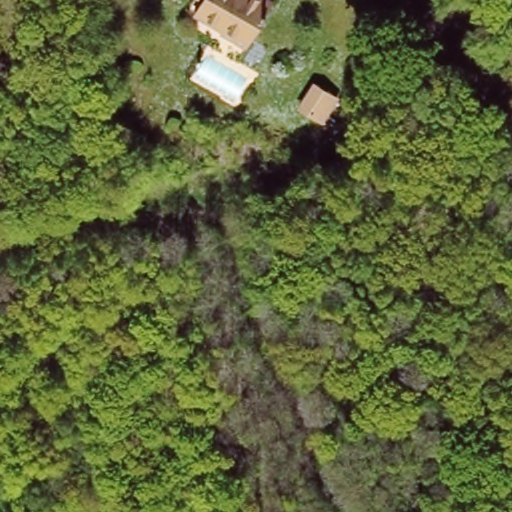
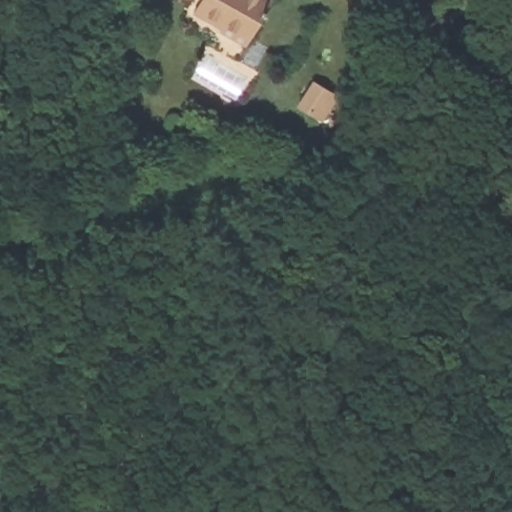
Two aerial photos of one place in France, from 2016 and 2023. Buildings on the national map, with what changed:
unchanged [(189,16),(197,0),(269,0),(246,48),(189,16)]
unchanged [(339,95),(324,123),(297,109),(313,80),(339,95)]

